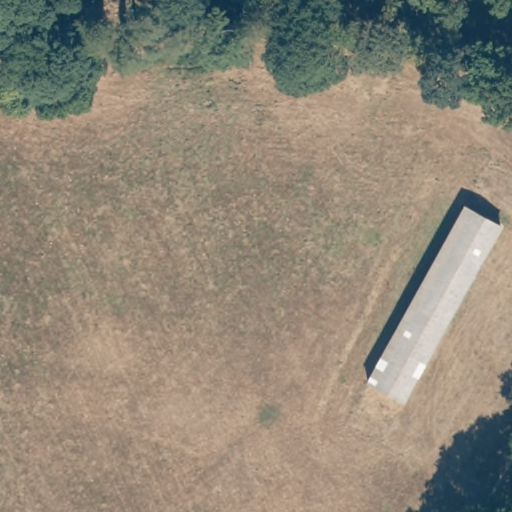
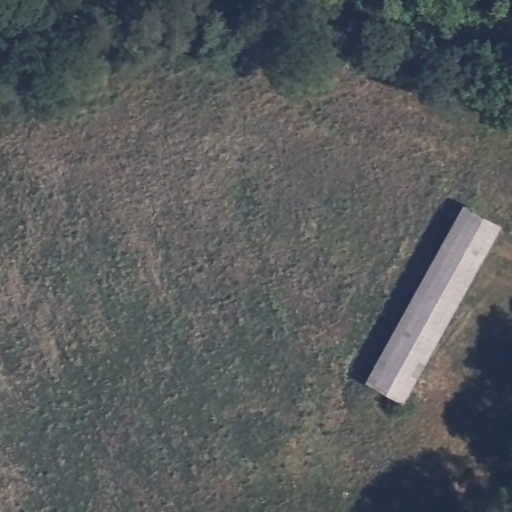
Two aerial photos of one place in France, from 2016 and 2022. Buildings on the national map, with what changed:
unchanged [(403,402),(365,381),(463,208),(501,229),(403,402)]

